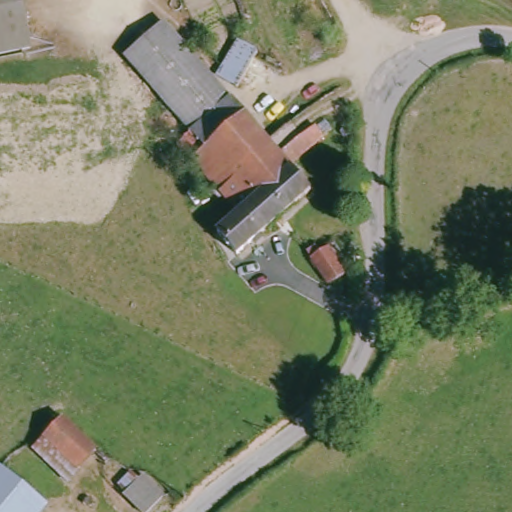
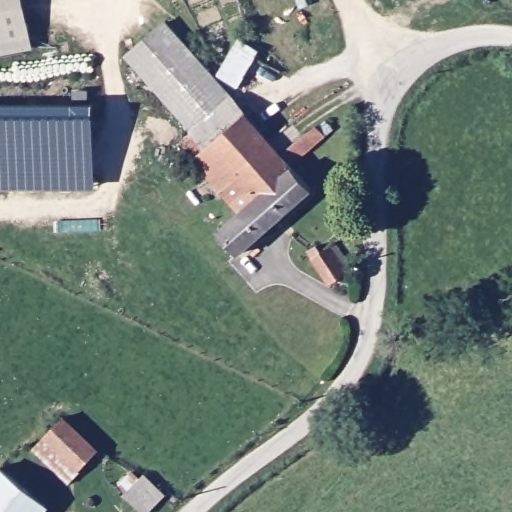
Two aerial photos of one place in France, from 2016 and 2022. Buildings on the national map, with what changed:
unchanged [(39,47),(0,55),(0,0),(29,0),(39,47)]
unchanged [(244,220),(196,166),(200,163),(183,144),(196,133),(133,59),(172,23),(237,98),(278,144),(243,176),(284,221),(280,225),(267,238),(245,257),(226,235),(244,220)]
unchanged [(245,85),(227,74),(242,47),(261,58),(245,85)]
new [(0,187),(0,103),(96,102),(97,188),(0,187)]
unchanged [(243,176),(278,144),(287,155),(322,126),(324,128),(331,122),(340,131),(298,166),(318,191),(284,221),(243,176)]
unchanged [(312,257),(334,239),(335,240),(353,263),(329,282),(312,257)]
unchanged [(102,453),(73,481),(40,449),(68,420),(102,453)]
unchanged [(53,504),(46,512),(0,512),(0,474),(7,465),(53,504)]
unchanged [(144,475),(146,473),(168,495),(150,512),(147,512),(123,484),(126,477),(136,468),(144,475)]

